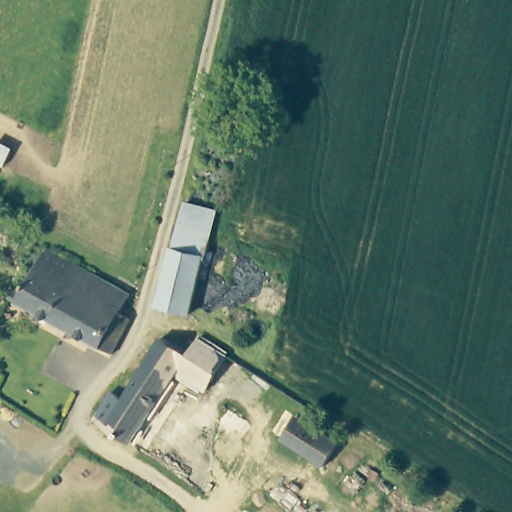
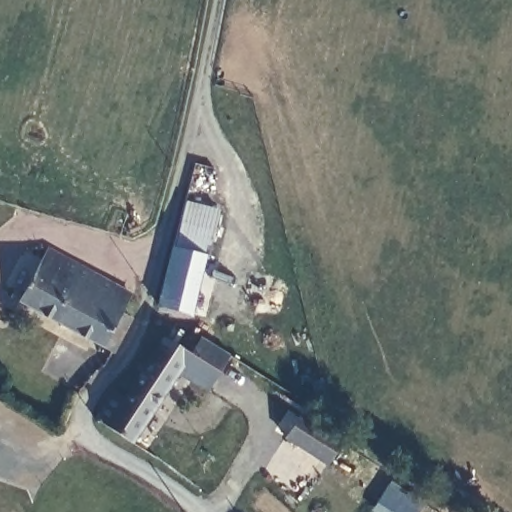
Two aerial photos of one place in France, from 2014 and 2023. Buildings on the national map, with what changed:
unchanged [(207,259),(173,251),(187,204),(214,211),(219,212),(213,238),(207,259)]
unchanged [(46,244),(101,273),(130,290),(119,311),(131,319),(115,348),(20,294),(36,262),(46,244)]
unchanged [(173,251),(207,259),(191,315),(158,304),(173,251)]
unchanged [(200,336),(228,356),(203,394),(174,376),(188,354),(200,336)]
unchanged [(108,396),(113,399),(119,390),(130,395),(166,339),(188,354),(136,434),(133,439),(91,416),(108,396)]
unchanged [(331,439),(317,460),(275,433),(289,411),(331,439)]
new [(423,503),(417,512),(371,512),(376,504),(391,481),(423,503)]

